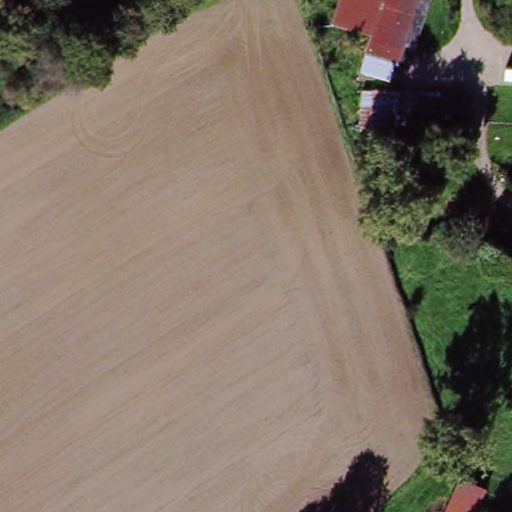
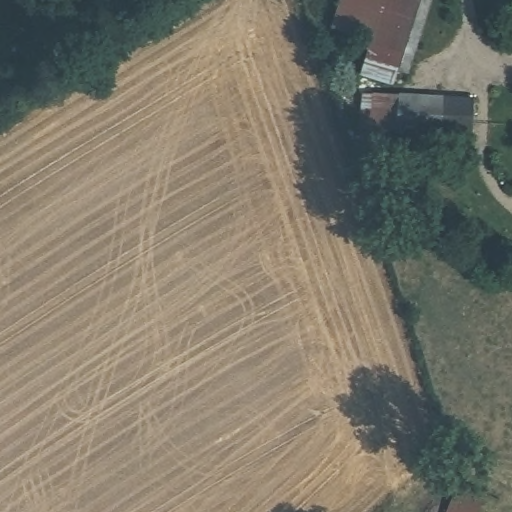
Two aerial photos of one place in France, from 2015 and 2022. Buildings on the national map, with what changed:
unchanged [(407,81),(364,76),(370,33),(336,22),(342,0),(429,0),(407,81)]
unchanged [(466,104),(465,131),(359,128),(361,92),(466,104)]
unchanged [(479,512),(443,512),(456,482),(487,491),(479,512)]

